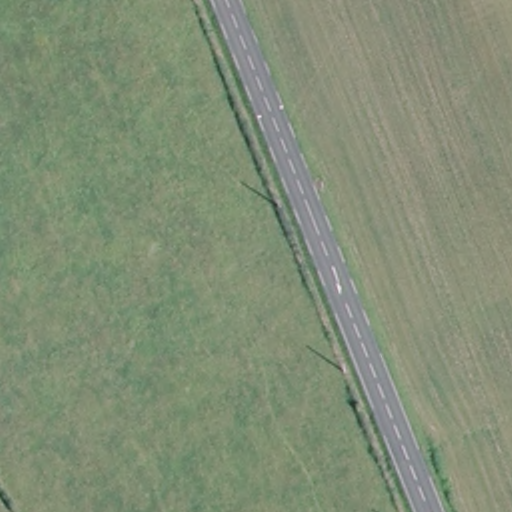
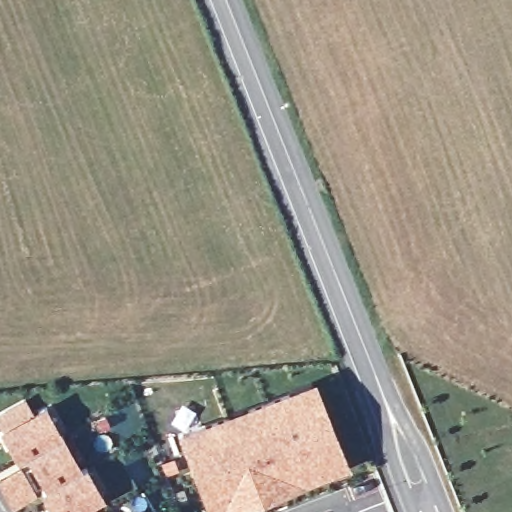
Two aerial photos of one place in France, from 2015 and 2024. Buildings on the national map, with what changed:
new [(341,454),(322,461),(325,471),(222,510),(215,496),(208,498),(185,436),(314,381),(341,454)]
new [(46,402),(80,464),(86,461),(106,496),(93,504),(97,512),(52,512),(41,491),(46,488),(29,454),(19,458),(3,429),(0,424),(0,415),(25,399),(33,410),(46,402)]
new [(111,512),(103,512),(109,508),(111,512)]
new [(126,512),(123,512),(126,510),(126,512)]

